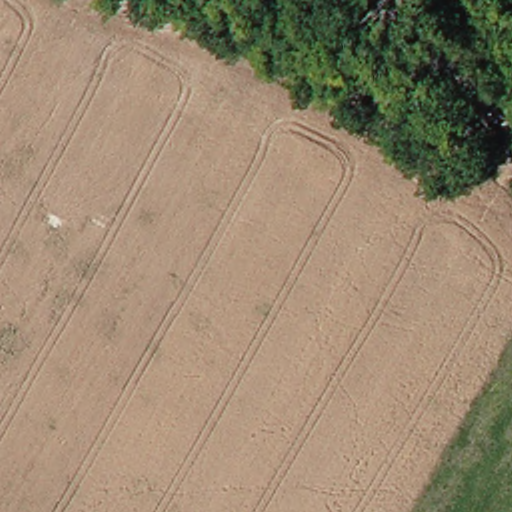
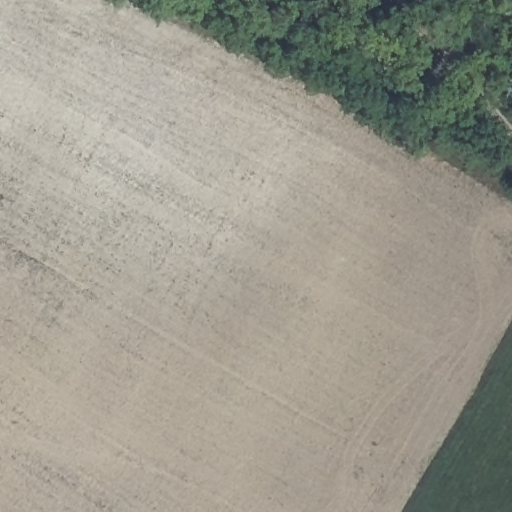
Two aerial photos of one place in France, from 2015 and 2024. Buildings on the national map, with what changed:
[]

